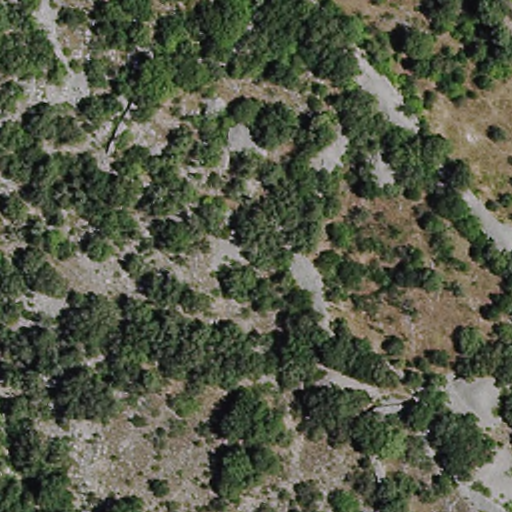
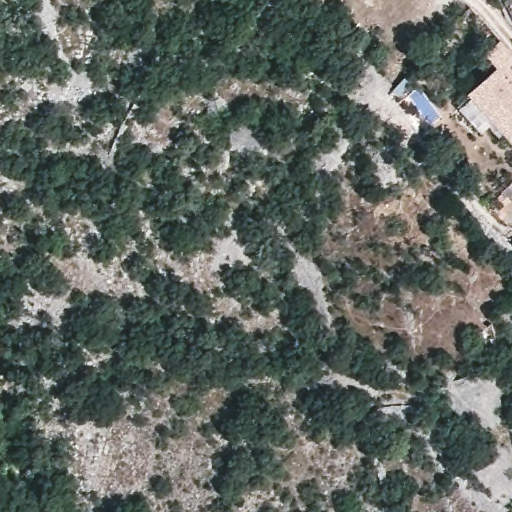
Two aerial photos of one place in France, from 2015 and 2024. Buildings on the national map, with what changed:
new [(512,144),(511,145),(465,95),(499,65),(512,79),(512,144)]

